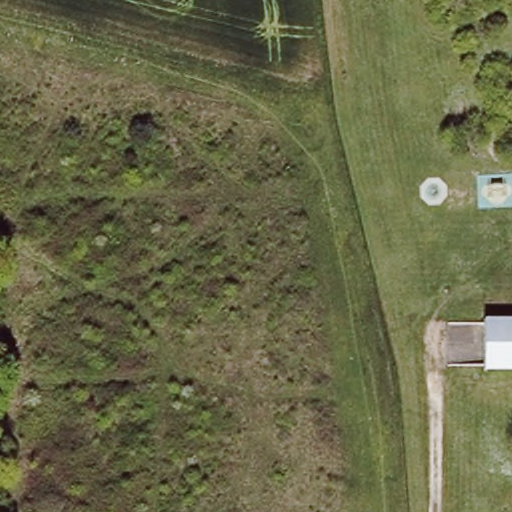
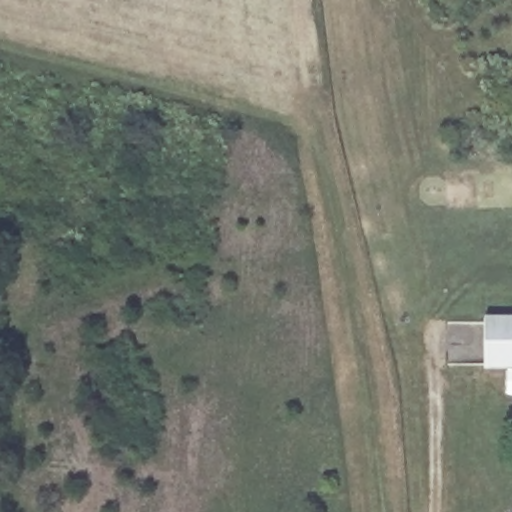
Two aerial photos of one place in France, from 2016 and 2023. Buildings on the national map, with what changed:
unchanged [(480,317),(512,318),(512,367),(481,367),(480,317)]

